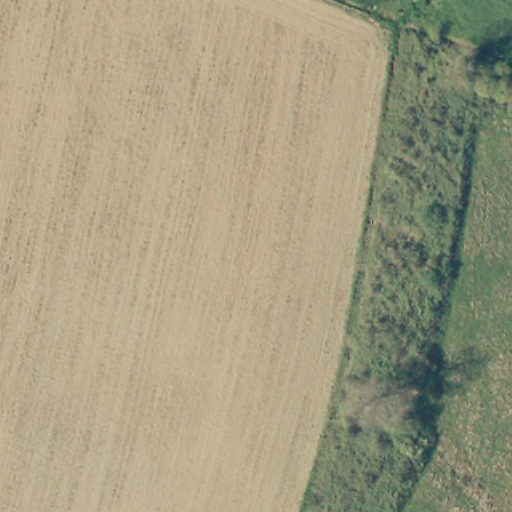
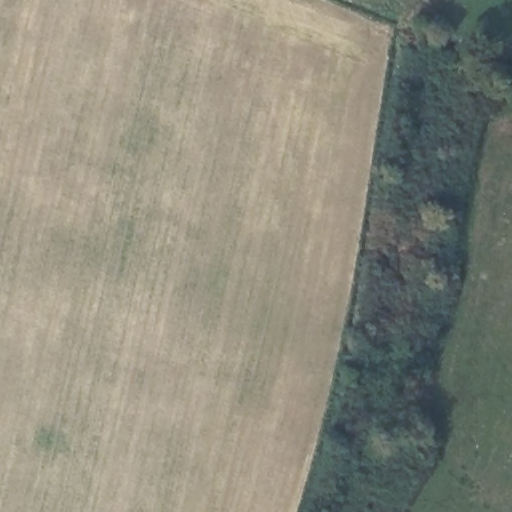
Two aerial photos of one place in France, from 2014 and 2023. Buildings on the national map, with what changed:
[]

